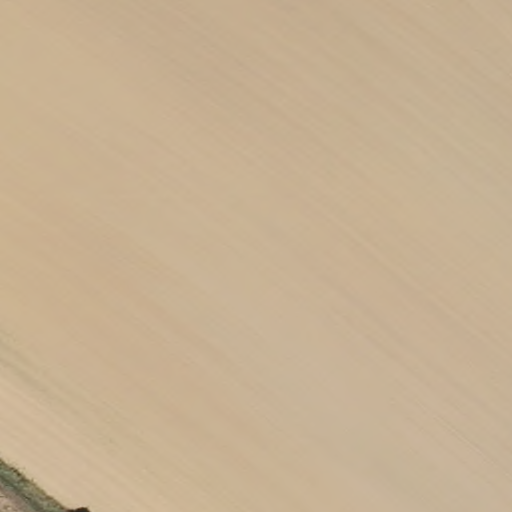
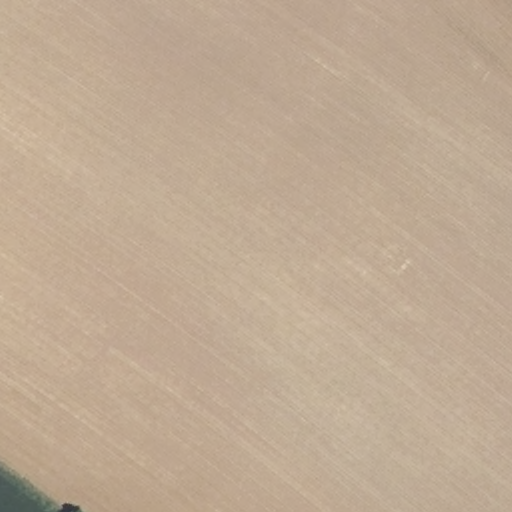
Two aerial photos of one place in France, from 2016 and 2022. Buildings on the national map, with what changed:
[]

